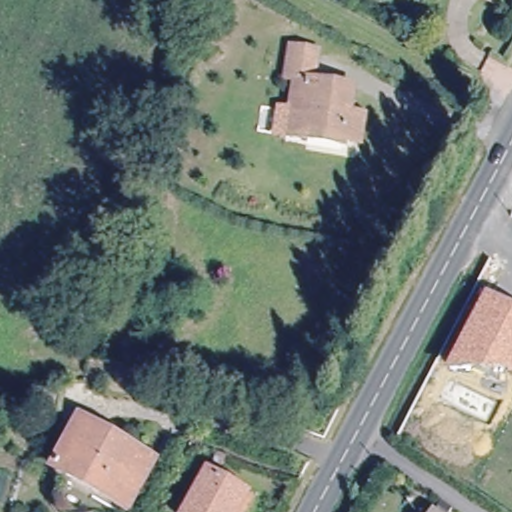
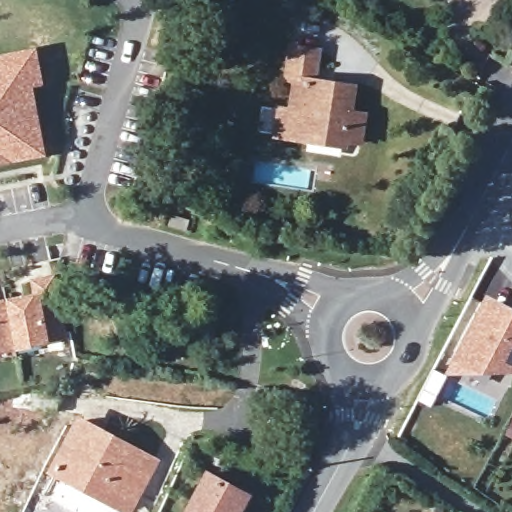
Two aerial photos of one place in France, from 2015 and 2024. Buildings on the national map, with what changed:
unchanged [(307,141),(286,137),(295,81),(285,80),(290,47),(320,52),(315,82),(352,87),(348,114),(363,116),(359,142),(345,140),(343,147),(307,141)]
new [(22,54),(32,52),(37,83),(27,85),(40,154),(15,159),(0,161),(0,58),(22,54)]
new [(36,298),(32,282),(51,278),(62,336),(12,346),(4,307),(4,305),(36,298)]
unchanged [(484,295),(512,309),(512,374),(445,373),(484,295)]
new [(4,307),(12,346),(0,348),(0,307),(4,307)]
unchanged [(79,421),(152,460),(125,508),(52,470),(79,421)]
unchanged [(226,459),(222,467),(212,463),(215,455),(226,459)]
unchanged [(235,512),(186,512),(202,477),(243,496),(235,512)]

